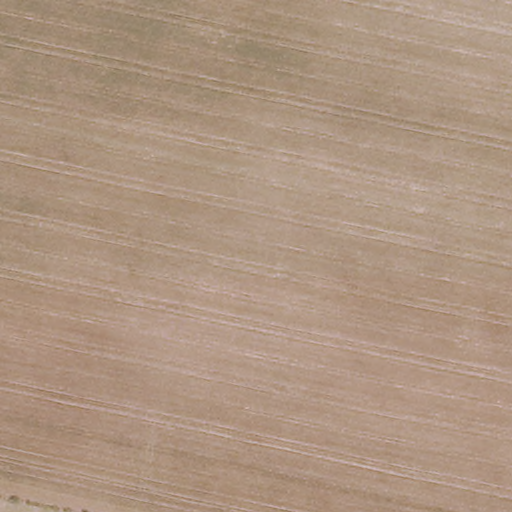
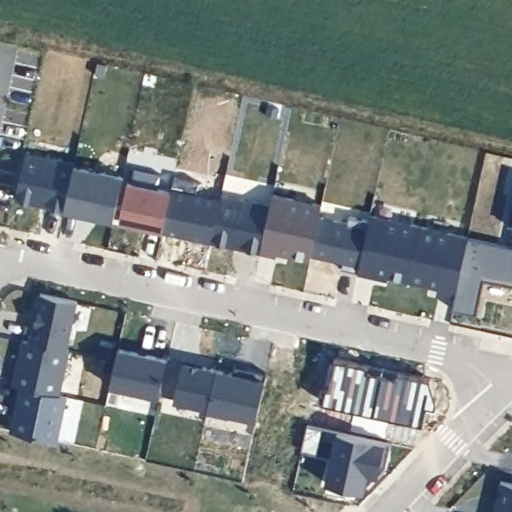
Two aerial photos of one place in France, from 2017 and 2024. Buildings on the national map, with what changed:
new [(65,208),(15,197),(25,158),(26,152),(74,162),(101,169),(101,170),(123,174),(122,179),(113,218),(65,208)]
new [(170,190),(162,229),(120,219),(127,180),(170,190)]
new [(341,267),(343,260),(311,253),(310,257),(277,250),(276,254),(260,250),(211,240),(220,200),(221,194),(271,205),(273,193),(321,204),(319,216),(347,221),(349,215),(369,219),(370,214),(420,225),(468,235),(512,244),(512,283),(485,277),(477,312),(452,307),(456,291),(440,288),(440,285),(408,278),(388,275),(388,277),(374,275),(358,271),(341,267)]
new [(512,202),(512,225),(507,224),(512,202)]
new [(512,245),(511,245),(512,242),(512,245)]
new [(35,321),(36,321),(38,308),(37,308),(40,291),(77,300),(66,348),(30,340),(35,321)]
new [(70,348),(60,393),(21,385),(11,383),(22,337),(30,340),(66,348),(70,348)]
new [(160,393),(111,382),(118,346),(167,356),(160,393)]
new [(185,355),(183,360),(216,367),(208,403),(174,396),(175,394),(160,391),(168,351),(185,355)]
new [(204,359),(203,364),(183,360),(185,355),(204,359)]
new [(437,400),(435,405),(427,403),(423,422),(325,400),(336,355),(430,376),(437,400)]
new [(246,373),(233,370),(235,363),(248,366),(267,370),(257,415),(230,410),(229,415),(207,410),(216,367),(246,373)]
new [(66,395),(57,439),(12,429),(21,385),(66,395)]
new [(323,426),(317,451),(301,448),(306,423),(323,426)]
new [(391,441),(386,465),(380,463),(377,474),(366,472),(363,490),(326,481),(337,429),(391,441)]
new [(500,478),(512,481),(512,512),(493,512),(500,478)]

